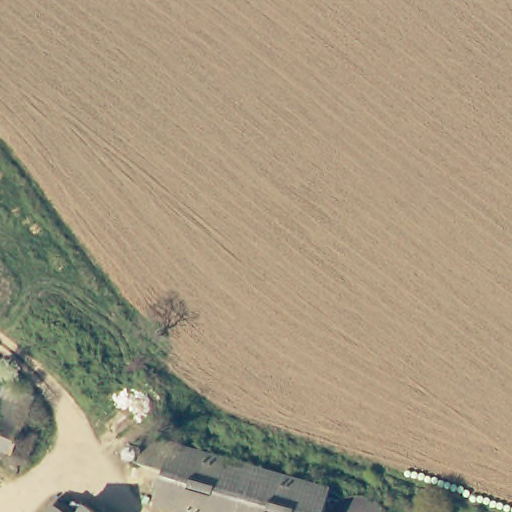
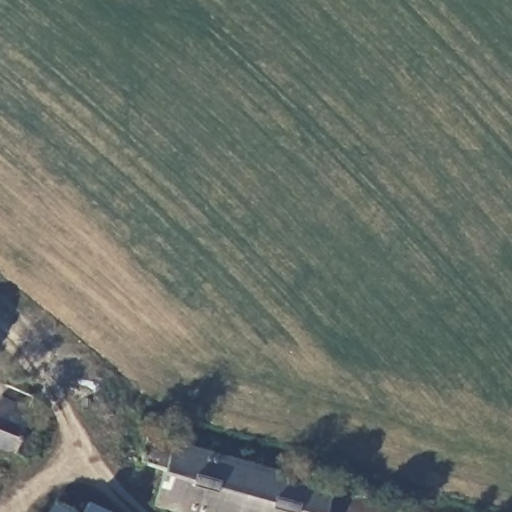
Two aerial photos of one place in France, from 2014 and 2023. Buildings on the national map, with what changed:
unchanged [(0,393),(2,386),(31,396),(27,408),(30,410),(22,430),(13,456),(0,451),(0,393)]
unchanged [(320,512),(174,512),(149,505),(159,470),(134,462),(141,437),(326,489),(320,512)]
unchanged [(61,512),(47,512),(51,506),(61,512)]
unchanged [(86,512),(78,512),(80,508),(86,512)]

